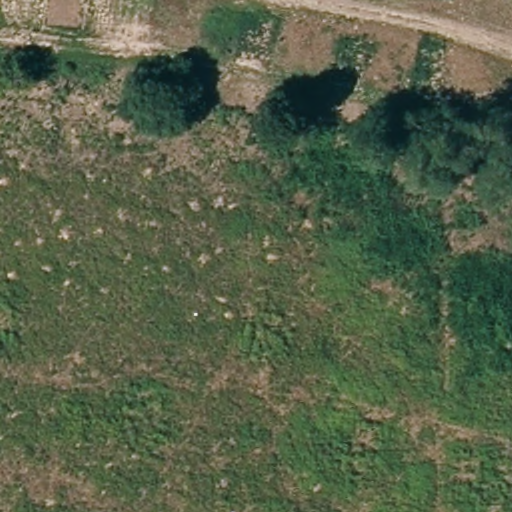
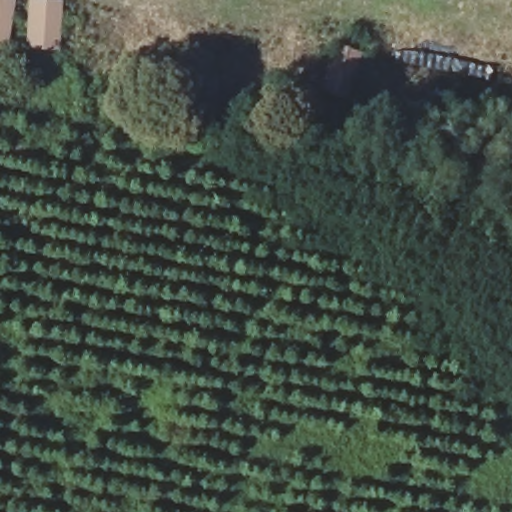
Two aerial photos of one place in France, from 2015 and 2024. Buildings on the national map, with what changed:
new [(8,49),(0,48),(0,0),(15,0),(8,49)]
new [(29,0),(63,0),(60,52),(25,49),(29,0)]

